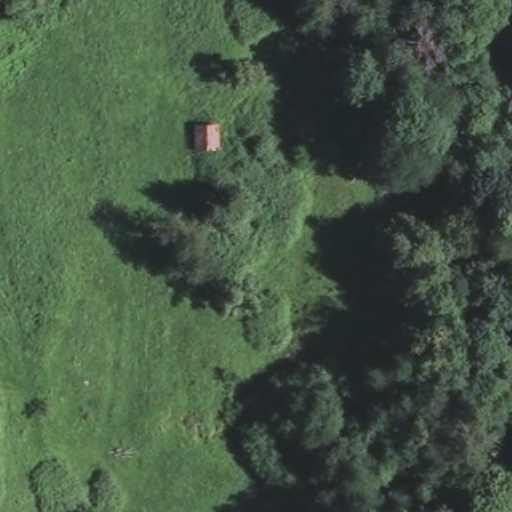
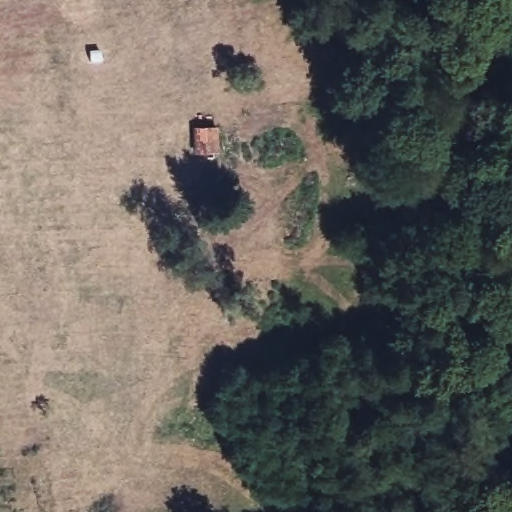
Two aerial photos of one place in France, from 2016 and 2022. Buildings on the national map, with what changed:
unchanged [(214,140),(219,161),(192,162),(191,125),(212,125),(214,140)]

